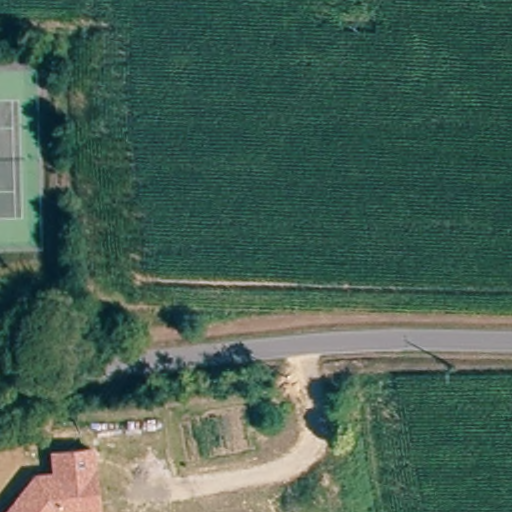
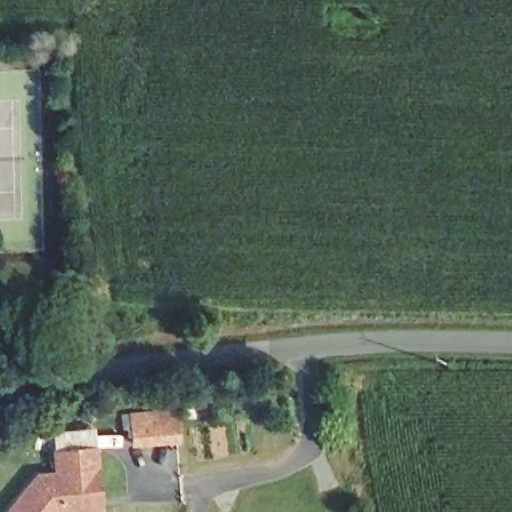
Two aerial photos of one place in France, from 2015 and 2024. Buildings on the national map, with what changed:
new [(176,405),(177,443),(127,447),(123,410),(176,405)]
unchanged [(35,474),(52,472),(50,451),(94,446),(102,512),(5,512),(35,474)]

